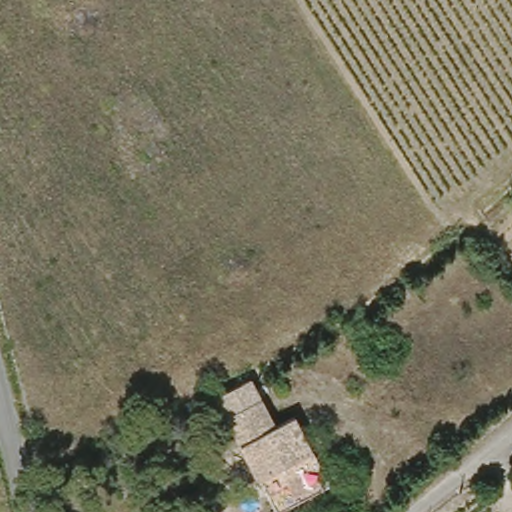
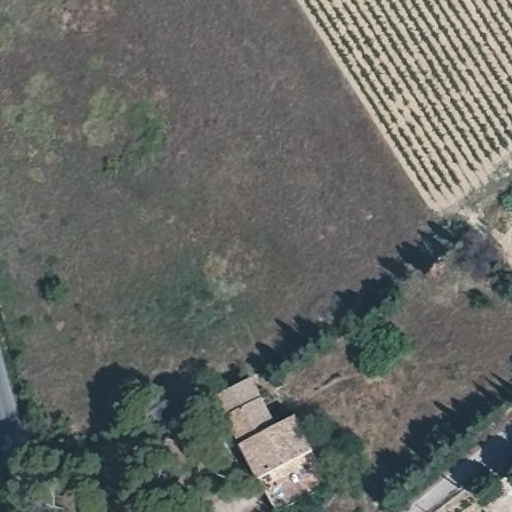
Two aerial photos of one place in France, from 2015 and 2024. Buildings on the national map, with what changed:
unchanged [(280,419),(297,411),(333,482),(281,511),(221,395),(245,381),(258,375),(280,419)]

